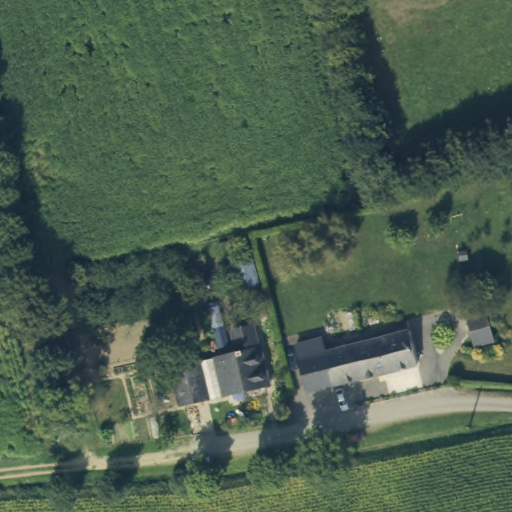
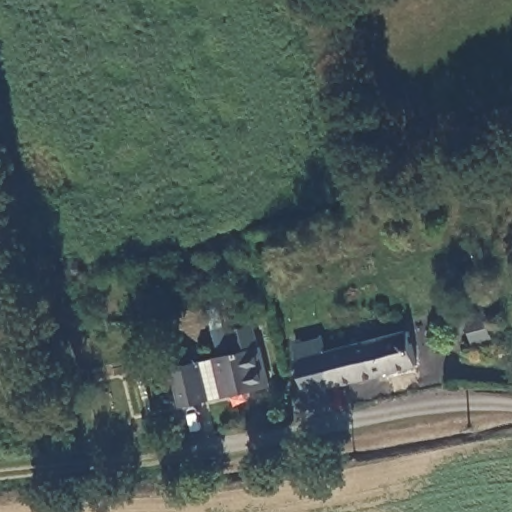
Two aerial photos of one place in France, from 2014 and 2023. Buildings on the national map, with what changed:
unchanged [(243,292),(236,265),(253,261),(260,288),(243,292)]
unchanged [(486,314),(493,341),(475,345),(469,318),(486,314)]
unchanged [(179,404),(170,367),(236,352),(232,334),(231,328),(253,323),(255,329),(267,384),(245,389),(225,393),(207,397),(179,404)]
unchanged [(407,336),(416,369),(307,395),(297,357),(296,353),(326,346),(329,357),(407,336)]

